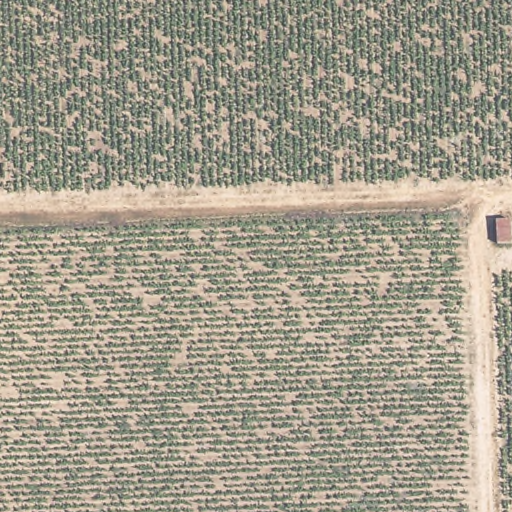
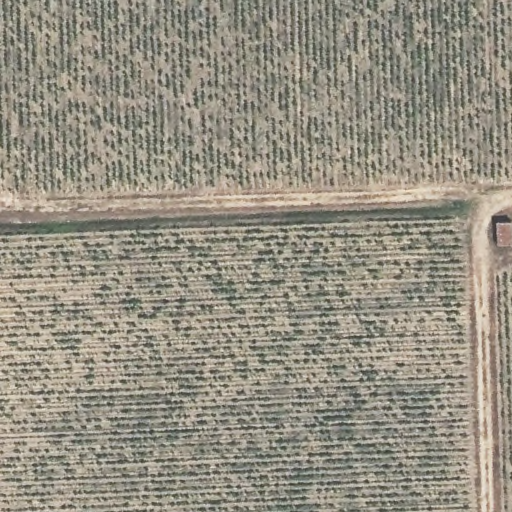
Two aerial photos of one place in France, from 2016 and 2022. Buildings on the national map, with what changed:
unchanged [(512,218),(512,243),(497,243),(496,218),(512,218)]

